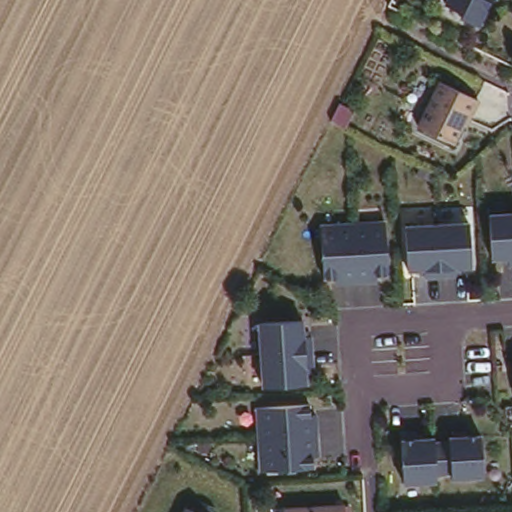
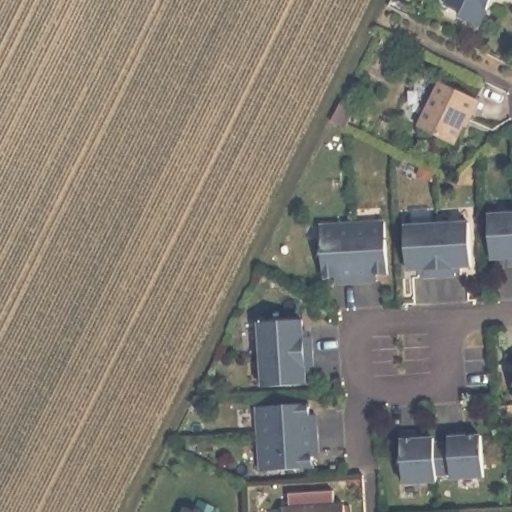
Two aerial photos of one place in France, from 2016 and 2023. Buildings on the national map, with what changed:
unchanged [(461,15),(463,11),(446,4),(448,0),(491,0),(487,8),(483,17),(479,24),(461,15)]
unchanged [(463,125),(453,144),(418,126),(440,81),(478,100),(471,116),(466,126),(463,125)]
unchanged [(348,126),(333,118),(341,99),(356,107),(348,126)]
unchanged [(512,210),(512,263),(507,263),(507,258),(493,258),(490,212),(512,210)]
unchanged [(334,276),(322,277),(319,224),(351,223),(384,221),(387,273),(375,274),(375,280),(370,280),(355,281),(340,282),(334,282),(334,276)]
unchanged [(417,270),(406,270),(403,227),(435,225),(467,224),(470,267),(459,267),(459,273),(453,272),(453,275),(438,276),(423,277),(423,274),(417,275),(417,270)]
unchanged [(305,372),(305,383),(262,385),(260,353),(259,321),(301,319),(302,330),(307,329),(307,335),(310,335),(311,350),(312,365),(310,366),(310,372),(305,372)]
unchanged [(311,455),(312,467),(260,470),(258,438),(256,406),(308,403),(309,414),(315,414),(315,419),(316,434),(317,449),(317,455),(311,455)]
unchanged [(416,434),(422,433),(423,438),(434,437),(434,443),(450,441),(449,436),(452,436),(452,431),(465,430),(465,435),(481,435),(483,476),(451,477),(451,473),(436,474),(436,481),(403,482),(400,431),(416,431),(416,434)]
unchanged [(283,509),(344,506),(344,512),(283,512),(283,509)]
unchanged [(187,507),(197,512),(184,512),(187,507)]

